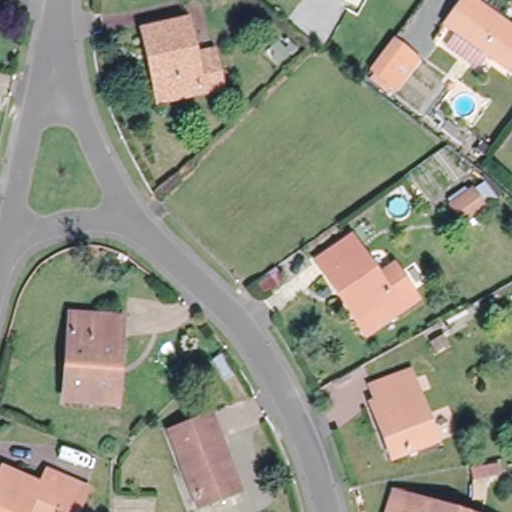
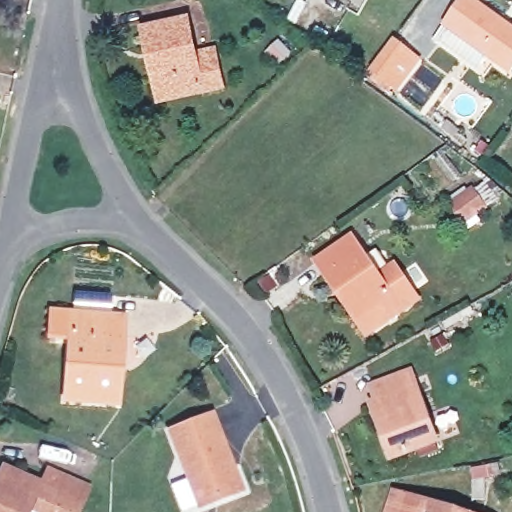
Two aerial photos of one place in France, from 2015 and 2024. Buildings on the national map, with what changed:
unchanged [(473,0),(512,27),(512,68),(511,70),(446,25),(465,0),(473,0)]
unchanged [(151,53),(146,30),(190,21),(197,54),(214,51),(222,88),(204,92),(162,102),(151,53)]
unchanged [(399,34),(414,45),(425,54),(414,68),(403,83),(397,90),(372,71),(377,63),(399,34)]
unchanged [(447,121),(461,133),(456,139),(441,128),(447,121)]
unchanged [(454,205),(475,191),(480,188),(491,204),(486,207),(465,221),(454,205)]
unchanged [(353,232),(379,270),(395,260),(417,292),(369,326),(320,255),(353,232)]
unchanged [(117,403),(68,399),(74,314),(106,316),(124,317),(122,338),(120,360),(119,380),(117,403)]
unchanged [(412,371),(438,441),(394,458),(380,423),(373,403),(379,400),(374,386),(412,371)]
unchanged [(235,493),(201,506),(174,430),(212,416),(224,447),(242,491),(235,493)]
unchanged [(494,465),(495,476),(475,480),(473,468),(494,465)]
unchanged [(5,468),(43,485),(50,470),(88,487),(78,512),(0,512),(0,478),(5,468)]
unchanged [(406,493),(465,512),(399,512),(406,493)]

